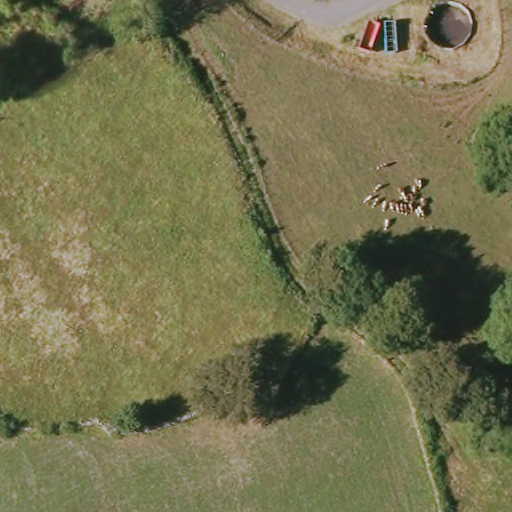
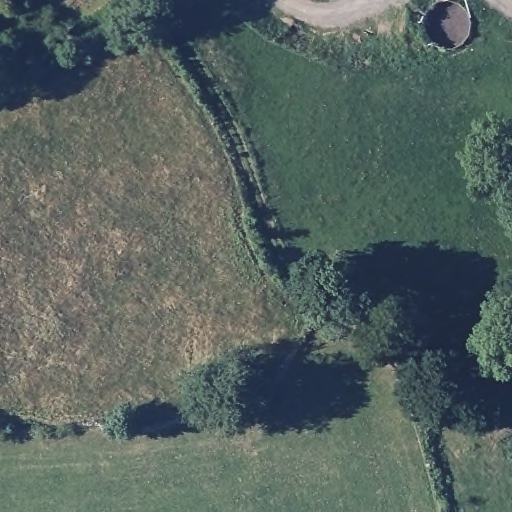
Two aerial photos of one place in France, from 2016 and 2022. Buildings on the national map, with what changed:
[]

